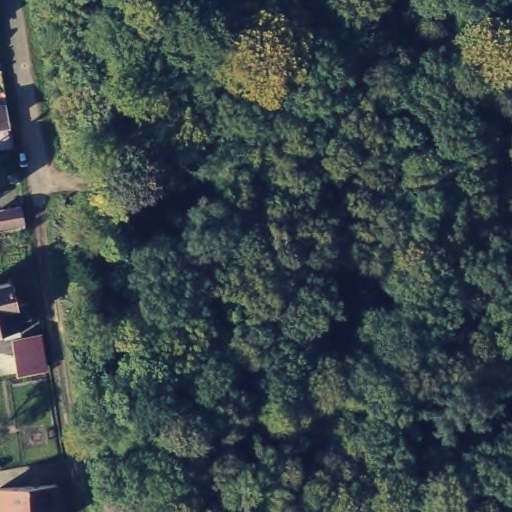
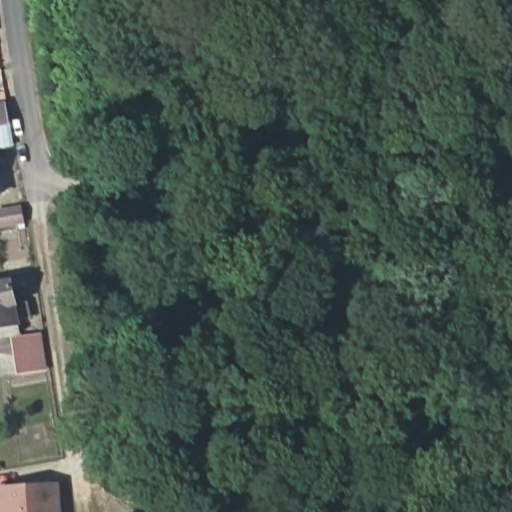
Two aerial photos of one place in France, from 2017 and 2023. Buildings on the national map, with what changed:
unchanged [(0,102),(8,101),(10,121),(0,122),(0,102)]
unchanged [(0,186),(2,195),(0,195),(0,186)]
unchanged [(0,209),(17,208),(17,225),(0,225),(0,209)]
unchanged [(30,298),(32,312),(20,315),(22,328),(7,331),(5,323),(0,324),(0,281),(15,277),(20,300),(30,298)]
unchanged [(45,332),(48,363),(22,367),(17,335),(45,332)]
unchanged [(57,512),(0,512),(0,483),(56,480),(57,512)]

